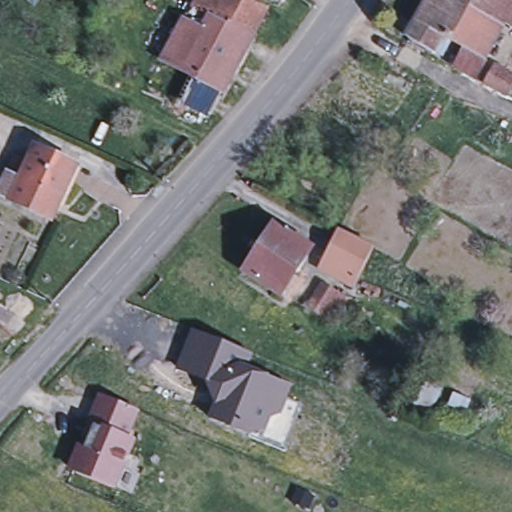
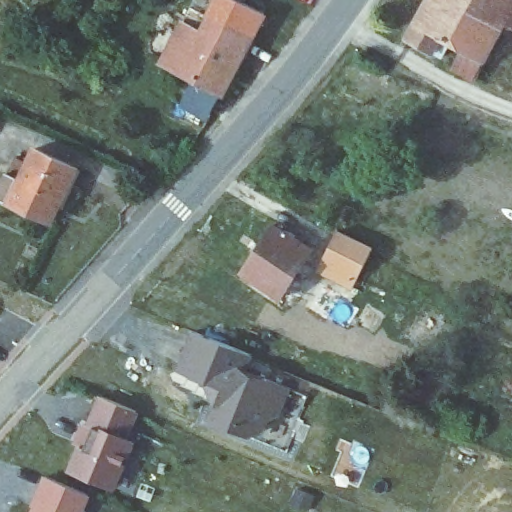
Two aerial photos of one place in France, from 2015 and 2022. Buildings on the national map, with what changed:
unchanged [(169,55),(150,45),(154,37),(169,7),(190,17),(199,0),(256,0),(269,7),(247,47),(233,74),(227,86),(214,110),(187,95),(201,72),(169,55)]
unchanged [(456,44),(442,37),(435,49),(426,46),(425,48),(402,34),(419,0),(441,0),(490,29),(477,55),(467,71),(446,60),(456,44)]
unchanged [(490,29),(441,0),(512,0),(512,27),(497,19),(490,29)]
unchanged [(27,178),(42,147),(82,166),(56,220),(1,195),(12,172),(27,178)]
unchanged [(310,247),(280,294),(244,271),(272,224),(310,247)]
unchanged [(372,247),(355,278),(320,260),(336,229),(372,247)]
unchanged [(302,310),(320,282),(351,299),(332,329),(302,310)]
unchanged [(194,332),(255,357),(249,372),(290,390),(279,416),(270,420),(264,434),(252,441),(210,424),(215,406),(208,386),(175,374),(194,332)]
unchanged [(414,368),(443,388),(429,423),(396,407),(414,368)]
unchanged [(75,446),(84,447),(93,427),(89,424),(102,396),(140,412),(126,439),(136,443),(117,495),(67,475),(75,446)]
new [(89,498),(83,512),(30,512),(44,479),(89,498)]

